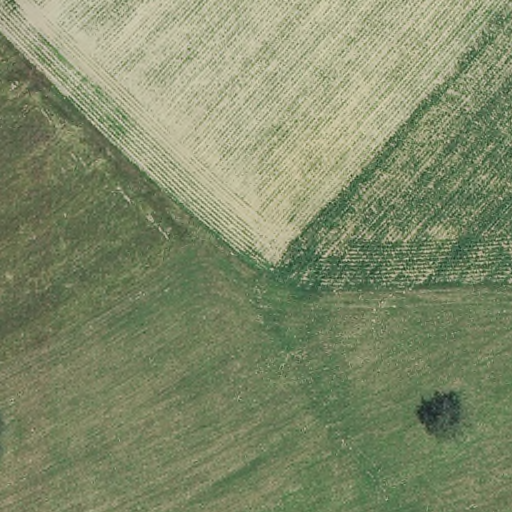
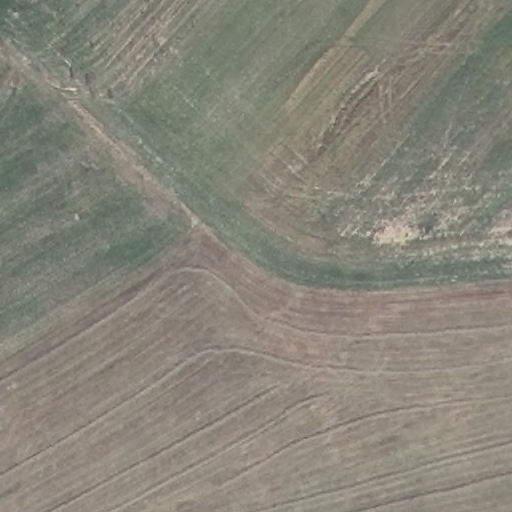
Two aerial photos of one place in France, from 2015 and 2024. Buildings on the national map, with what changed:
[]

